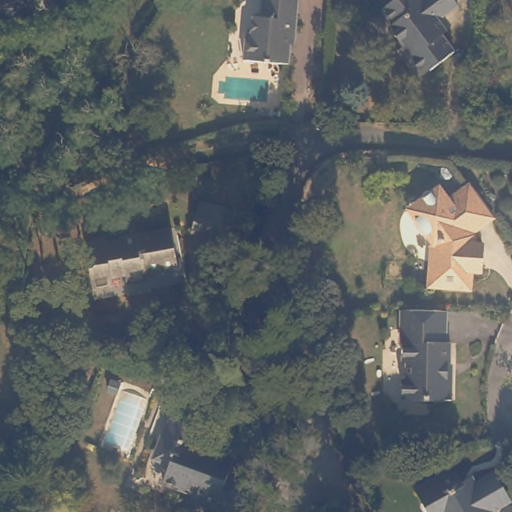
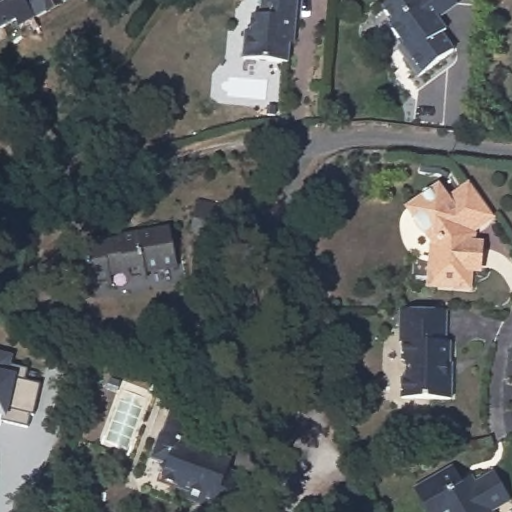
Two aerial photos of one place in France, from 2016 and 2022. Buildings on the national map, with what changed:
unchanged [(27,22),(19,26),(16,20),(11,23),(0,29),(0,0),(23,0),(34,19),(27,22)]
unchanged [(23,0),(66,0),(34,19),(23,0)]
unchanged [(287,64),(242,61),(244,33),(249,33),(250,16),(258,17),(260,0),(291,0),(297,0),(295,36),(293,46),(289,45),(287,64)]
unchanged [(442,21),(450,33),(445,37),(457,53),(423,79),(408,59),(411,58),(405,49),(408,47),(394,27),(398,24),(387,9),(399,0),(458,0),(462,6),(442,21)]
unchanged [(490,256),(482,255),(478,255),(477,277),(436,274),(438,249),(441,250),(441,234),(428,218),(414,197),(420,193),(445,174),(456,189),(472,177),(482,178),(501,203),(477,219),(482,224),(481,235),(485,235),(492,235),(490,256)]
unchanged [(227,209),(218,241),(190,234),(198,203),(227,209)]
unchanged [(124,284),(123,275),(106,279),(107,286),(92,289),(84,244),(102,241),(102,244),(117,241),(117,239),(169,229),(177,268),(145,273),(146,280),(124,284)]
unchanged [(400,313),(444,314),(443,348),(447,348),(448,349),(399,338),(400,313)]
unchanged [(443,348),(448,349),(447,368),(445,368),(445,381),(450,381),(450,403),(403,403),(403,381),(407,379),(407,368),(402,367),(403,348),(399,348),(399,338),(443,348)]
new [(16,354),(14,367),(26,369),(22,381),(41,384),(32,416),(28,414),(26,428),(0,423),(0,351),(16,354)]
unchanged [(206,411),(195,440),(209,445),(228,452),(232,458),(231,463),(256,473),(241,512),(239,512),(190,494),(192,486),(165,476),(172,457),(160,452),(167,430),(179,401),(206,411)]
unchanged [(459,492),(470,493),(492,481),(507,507),(499,512),(425,512),(416,497),(451,477),(459,492)]

